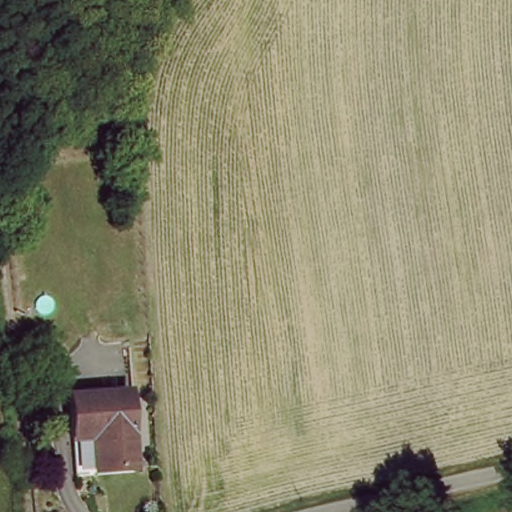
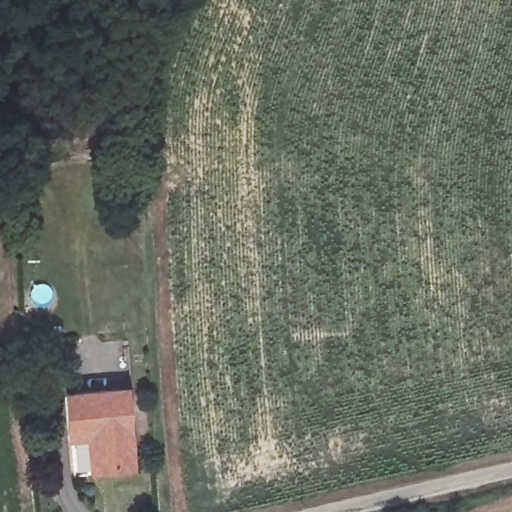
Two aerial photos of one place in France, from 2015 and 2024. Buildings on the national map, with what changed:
unchanged [(95,431),(72,433),(68,393),(130,387),(137,464),(99,467),(95,431)]

